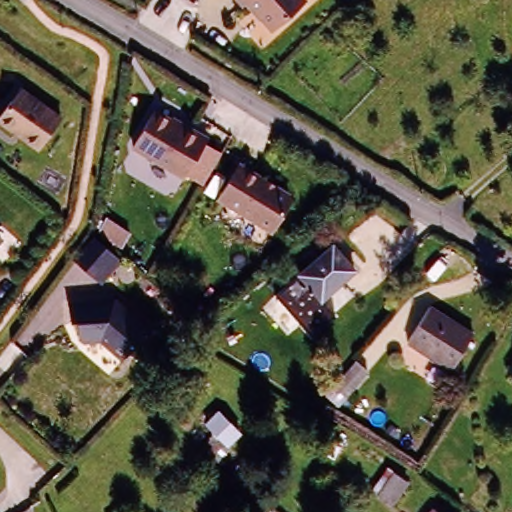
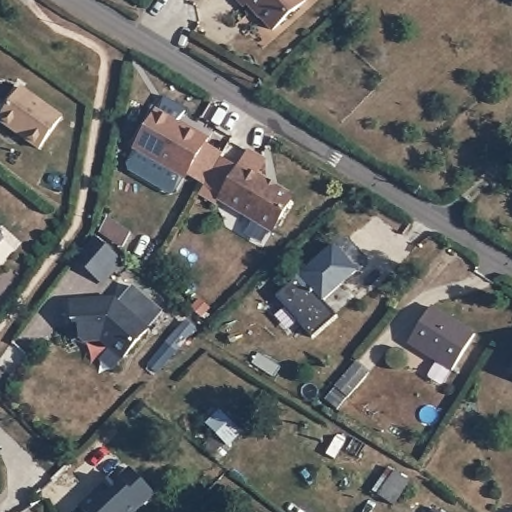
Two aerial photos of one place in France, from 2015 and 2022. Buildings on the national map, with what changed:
unchanged [(251,0),(249,3),(246,0),(303,0),(277,26),(251,0)]
unchanged [(62,116),(40,148),(0,119),(0,117),(22,87),(62,116)]
unchanged [(180,176),(128,145),(150,109),(187,131),(188,129),(202,138),(180,176)]
unchanged [(239,164),(265,179),(264,183),(274,189),(279,188),(289,194),(290,199),(272,230),(218,198),(239,164)]
unchanged [(100,243),(123,258),(103,284),(80,264),(100,243)]
unchanged [(297,273),(330,244),(353,270),(320,300),(297,273)]
unchanged [(149,327),(124,358),(102,339),(84,342),(80,339),(80,323),(74,323),(75,303),(114,299),(149,327)]
unchanged [(479,330),(457,366),(411,338),(432,303),(479,330)]
unchanged [(392,349),(345,409),(323,391),(375,332),(392,349)]
unchanged [(510,367),(512,363),(512,368),(510,367)]
unchanged [(212,434),(202,424),(217,411),(238,432),(224,447),(222,444),(211,455),(202,444),(212,434)]
unchanged [(405,478),(390,502),(373,491),(389,467),(405,478)]
new [(81,507),(114,476),(118,480),(130,469),(154,495),(135,512),(86,512),(81,507)]
unchanged [(438,504),(448,512),(431,512),(438,504)]

